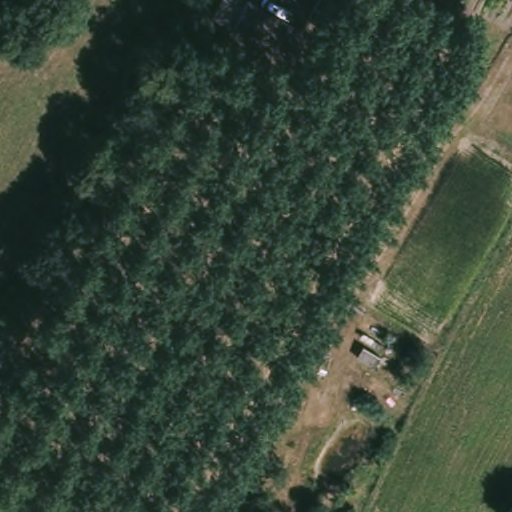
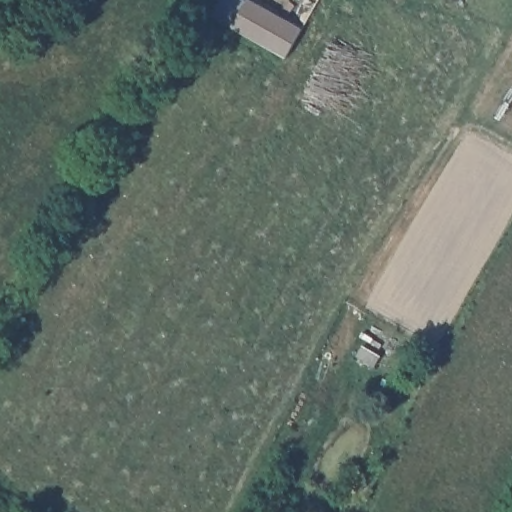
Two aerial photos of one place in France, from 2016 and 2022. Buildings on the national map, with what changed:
new [(247,0),(248,0),(302,30),(286,59),(231,28),(247,0)]

